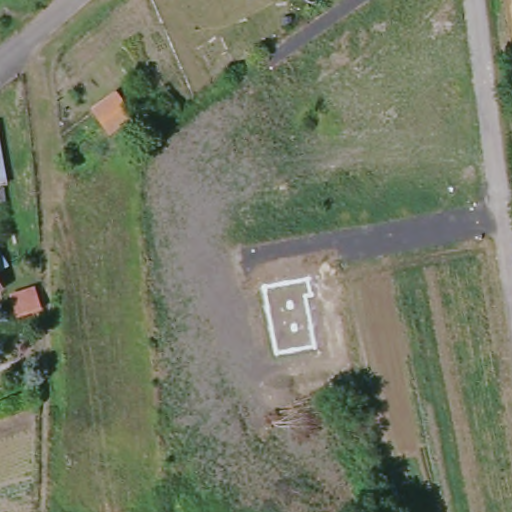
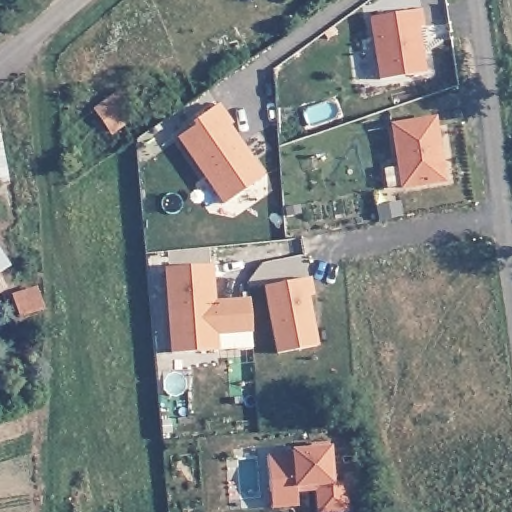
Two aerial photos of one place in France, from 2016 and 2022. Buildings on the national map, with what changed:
new [(379,78),(369,19),(422,10),(424,26),(420,27),(427,72),(379,78)]
unchanged [(94,113),(113,97),(129,117),(111,133),(94,113)]
new [(223,203),(176,140),(193,127),(189,124),(221,103),(234,122),(229,126),(264,175),(223,203)]
new [(401,188),(389,124),(436,116),(446,182),(401,188)]
new [(218,335),(219,350),(173,353),(165,269),(212,265),(216,301),(249,297),(253,332),(218,335)]
new [(277,353),(264,287),(312,277),(316,296),(309,298),(319,345),(277,353)]
unchanged [(0,290),(0,288),(1,290),(0,290)]
unchanged [(23,319),(15,302),(39,292),(46,309),(23,319)]
new [(318,512),(315,490),(296,491),(296,506),(274,508),(268,456),(291,452),(290,450),(329,445),(334,483),(347,482),(351,512),(345,512),(318,512)]

